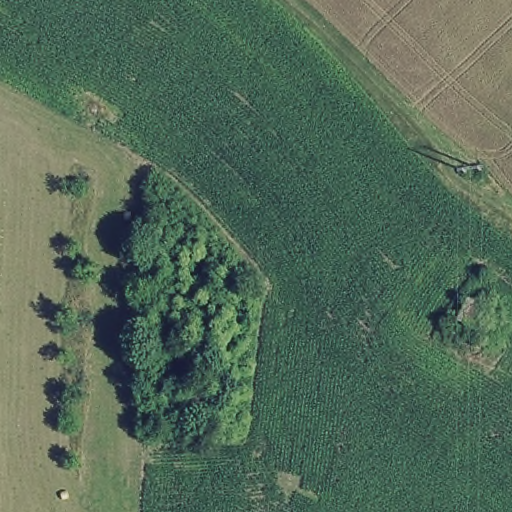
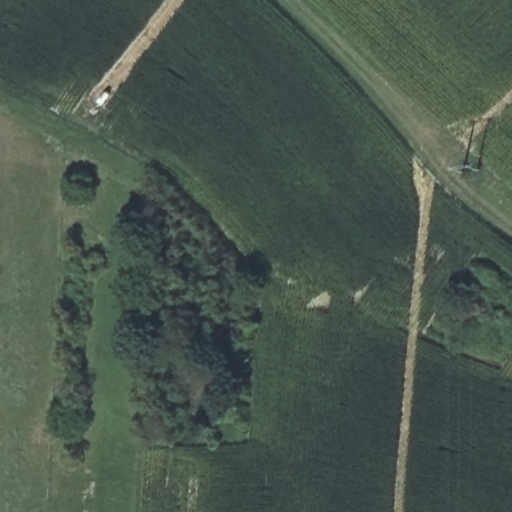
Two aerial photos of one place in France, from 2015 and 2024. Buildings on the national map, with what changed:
unchanged [(499,315),(486,336),(456,318),(469,297),(499,315)]

